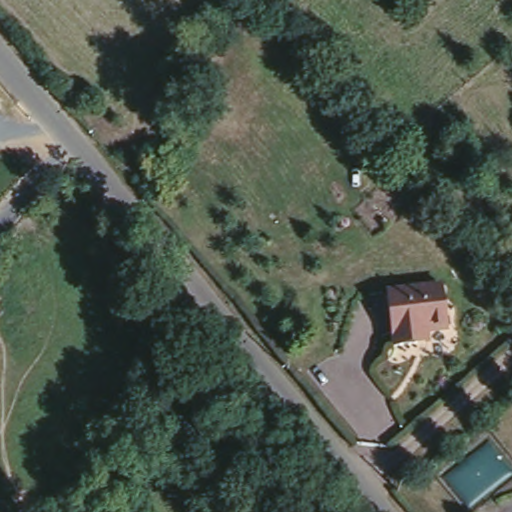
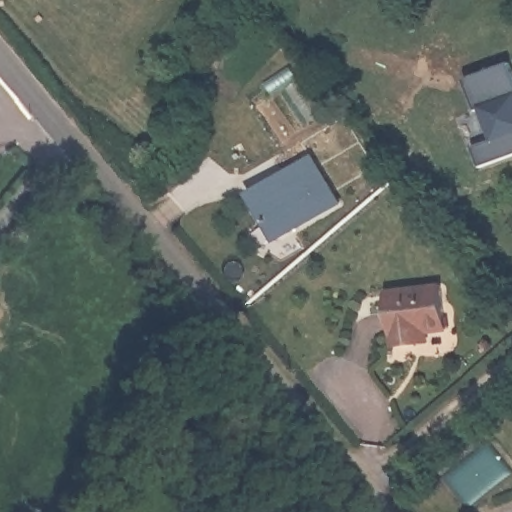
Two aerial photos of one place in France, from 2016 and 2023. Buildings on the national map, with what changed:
new [(491,138),(481,109),(476,110),(466,78),(512,63),(512,155),(481,166),(473,145),(491,138)]
new [(342,203),(275,241),(246,194),(315,155),(342,203)]
unchanged [(412,345),(388,345),(385,292),(415,291),(440,290),(441,310),(442,328),(423,329),(424,344),(412,345)]

